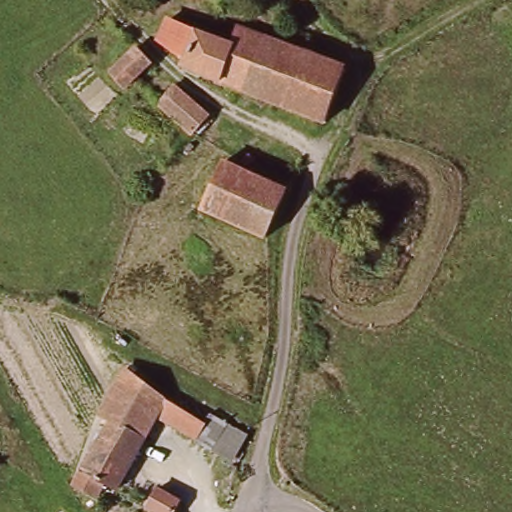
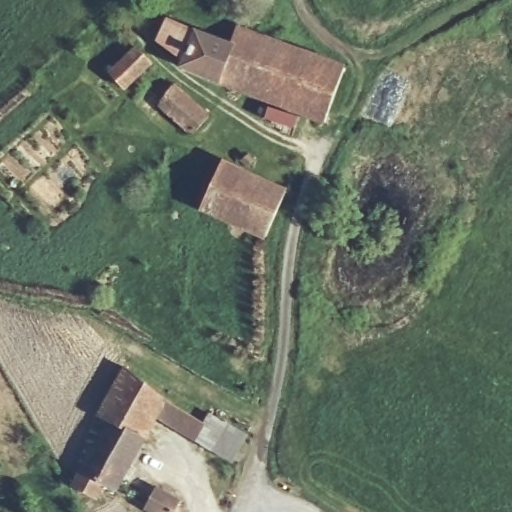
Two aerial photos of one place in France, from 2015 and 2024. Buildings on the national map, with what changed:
unchanged [(342,69),(322,118),(173,60),(179,44),(154,34),(161,17),(219,39),(224,25),(308,55),(342,69)]
unchanged [(149,59),(129,84),(127,87),(113,78),(134,48),(149,59)]
unchanged [(168,90),(206,112),(194,132),(156,111),(168,90)]
unchanged [(226,162),(285,193),(261,232),(204,204),(226,162)]
unchanged [(210,430),(218,420),(236,430),(218,458),(158,421),(118,486),(111,481),(101,497),(80,483),(116,421),(110,417),(136,372),(210,430)]
unchanged [(169,512),(157,512),(147,505),(161,486),(179,498),(169,512)]

